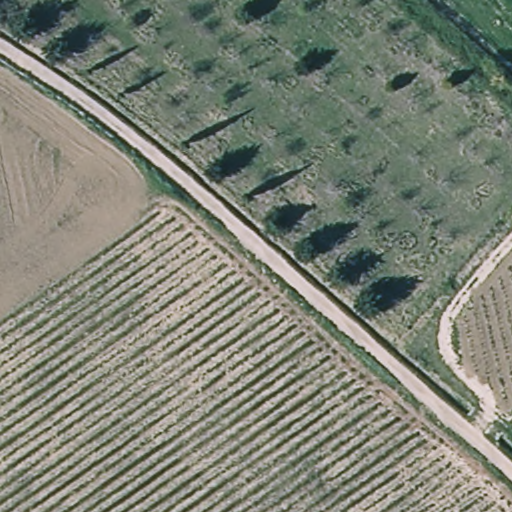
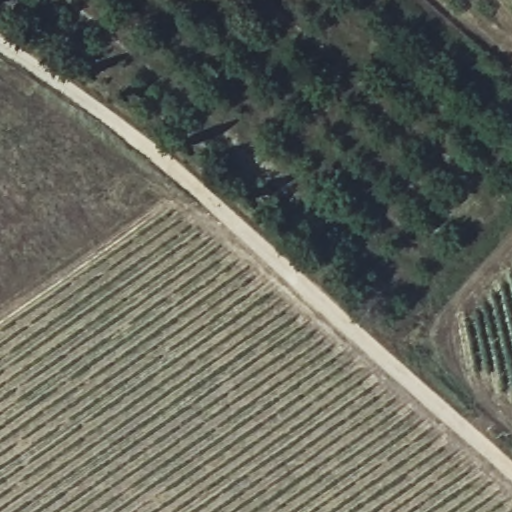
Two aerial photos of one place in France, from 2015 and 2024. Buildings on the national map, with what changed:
[]

